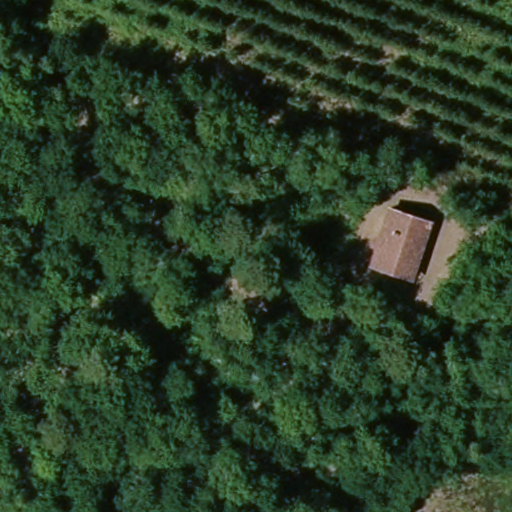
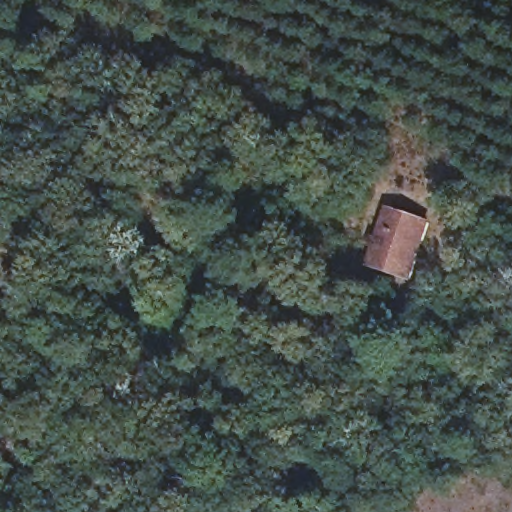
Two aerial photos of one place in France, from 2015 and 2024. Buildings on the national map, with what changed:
unchanged [(413,281),(362,265),(379,209),(428,225),(413,281)]

